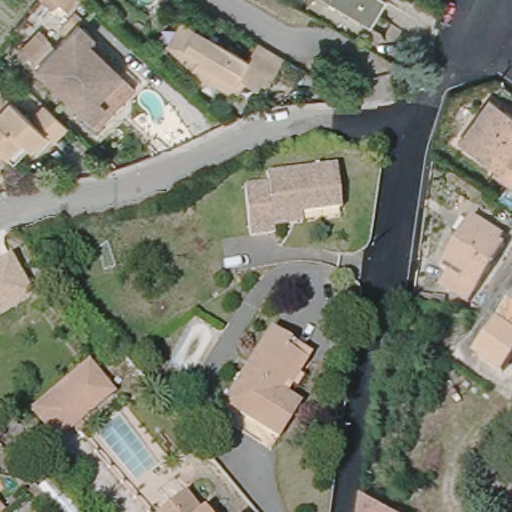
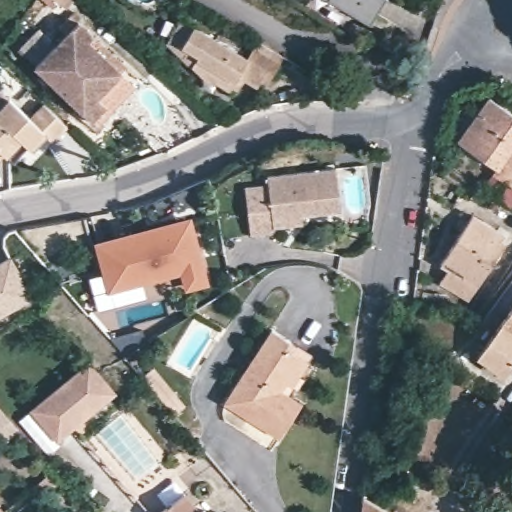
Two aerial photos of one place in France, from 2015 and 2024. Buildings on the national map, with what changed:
unchanged [(62,0),(78,0),(72,8),(62,0)]
unchanged [(328,0),(384,0),(369,25),(364,21),(328,0)]
unchanged [(96,121),(40,66),(41,66),(30,55),(29,56),(24,51),(47,28),(47,36),(58,47),(71,34),(63,26),(80,10),(87,16),(83,21),(98,36),(131,67),(125,73),(141,88),(103,127),(96,121)]
unchanged [(261,80),(257,86),(244,79),(237,91),(232,87),(229,92),(215,84),(213,86),(205,81),(191,68),(176,54),(165,44),(180,20),(192,28),(246,60),(257,41),(283,57),(267,84),(261,80)]
unchanged [(9,99),(29,119),(43,104),(67,126),(52,141),(44,134),(30,148),(21,139),(5,156),(3,154),(0,157),(0,90),(9,99)]
unchanged [(493,173),(496,169),(458,142),(490,98),(512,114),(512,177),(508,183),(493,173)]
unchanged [(273,227),(274,232),(250,235),(244,187),(268,184),(267,176),(335,167),(340,209),(301,214),(302,223),(273,227)]
unchanged [(512,177),(512,186),(508,183),(512,177)]
unchanged [(469,296),(440,278),(449,265),(441,259),(472,211),(504,232),(501,237),(505,240),(469,296)]
new [(182,216),(189,237),(195,235),(210,280),(188,288),(181,266),(171,269),(173,274),(109,296),(92,247),(182,216)]
unchanged [(10,256),(33,296),(0,316),(0,262),(10,256)]
unchanged [(444,306),(413,301),(414,287),(446,292),(444,306)]
unchanged [(498,373),(475,356),(512,304),(512,364),(507,360),(498,373)]
unchanged [(304,378),(297,388),(291,385),(286,393),(301,402),(277,438),(223,403),(271,329),(291,342),(311,355),(307,361),(298,374),(304,378)]
unchanged [(56,442),(31,411),(90,362),(115,392),(56,442)]
new [(171,412),(161,400),(145,381),(154,373),(171,392),(180,404),(171,412)]
new [(19,439),(4,452),(0,447),(0,416),(19,439)]
unchanged [(190,492),(206,511),(208,509),(210,512),(165,512),(190,492)]
unchanged [(361,501),(382,512),(360,512),(361,501)]

